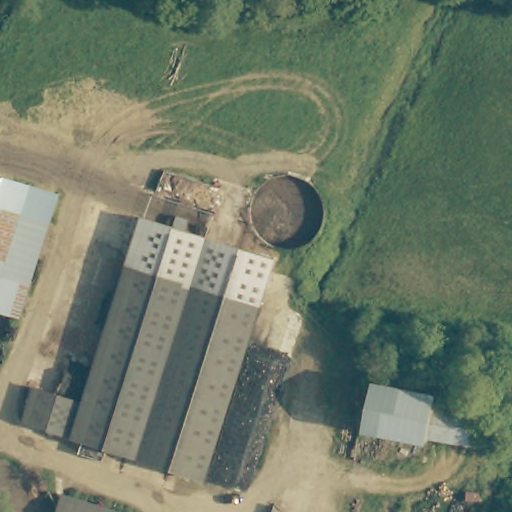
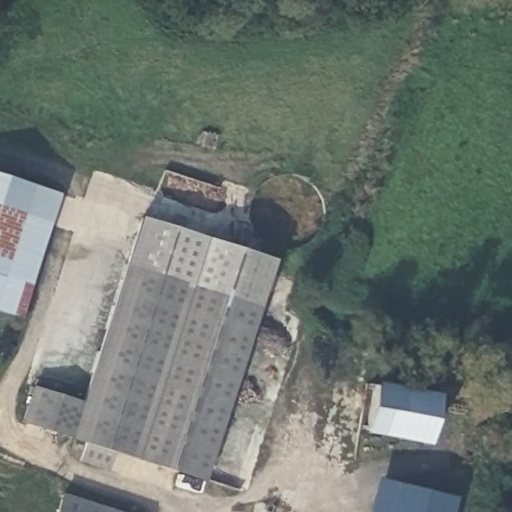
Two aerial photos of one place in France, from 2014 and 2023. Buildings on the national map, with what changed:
unchanged [(60,193),(20,319),(0,313),(0,175),(60,193)]
unchanged [(141,217),(275,261),(260,308),(191,286),(126,266),(141,217)]
unchanged [(125,417),(83,405),(126,266),(191,286),(260,308),(207,479),(114,451),(125,417)]
unchanged [(428,442),(364,430),(373,384),(436,396),(429,437),(428,442)]
unchanged [(33,389),(83,405),(125,417),(114,451),(23,423),(33,389)]
new [(368,512),(376,478),(455,498),(452,512),(368,512)]
unchanged [(122,512),(59,512),(64,494),(122,512)]

